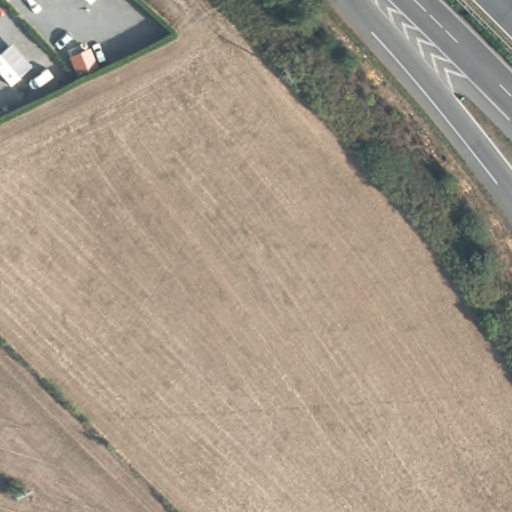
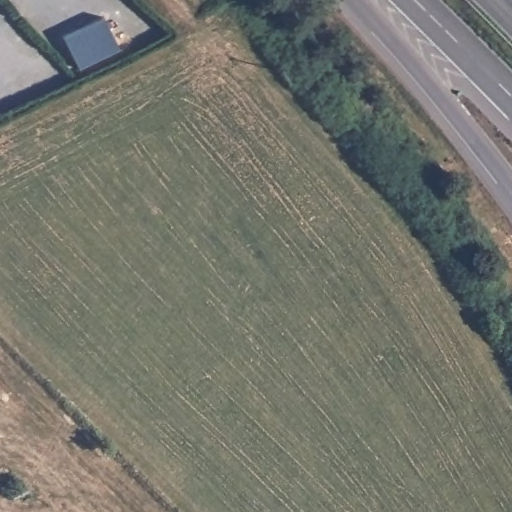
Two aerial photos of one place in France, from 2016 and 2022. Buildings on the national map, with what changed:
new [(120,47),(78,67),(63,37),(105,17),(120,47)]

